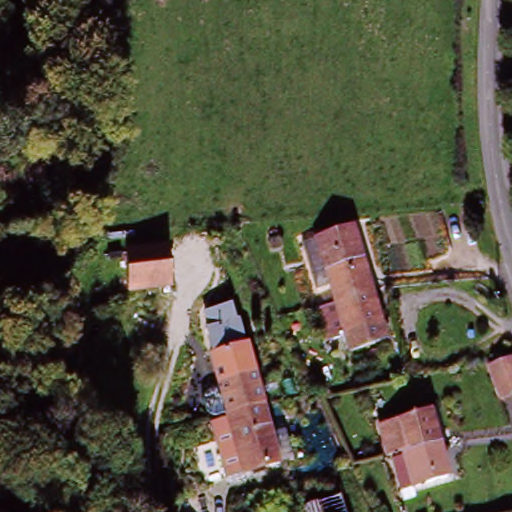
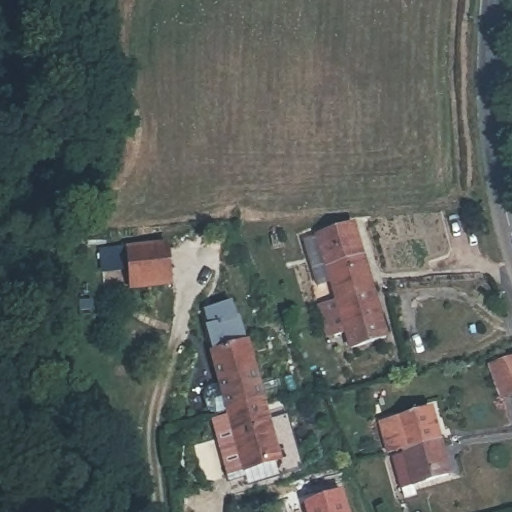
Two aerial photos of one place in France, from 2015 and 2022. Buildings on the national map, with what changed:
unchanged [(358,335),(352,318),(347,320),(339,291),(329,260),(322,236),(350,227),(357,251),(367,281),(380,327),(358,335)]
unchanged [(132,245),(173,242),(175,282),(135,285),(132,245)]
unchanged [(347,320),(352,318),(358,335),(380,327),(386,345),(348,352),(342,335),(325,340),(315,305),(340,298),(347,320)]
unchanged [(277,468),(231,475),(220,418),(200,312),(230,305),(235,320),(237,320),(246,350),(237,352),(225,355),(252,350),(258,375),(265,408),(272,438),(277,468)]
unchanged [(487,366),(512,363),(512,398),(490,401),(487,366)]
unchanged [(448,478),(397,487),(389,456),(382,457),(376,424),(407,418),(434,411),(440,440),(447,468),(448,478)]
unchanged [(334,500),(338,512),(306,512),(305,508),(334,500)]

